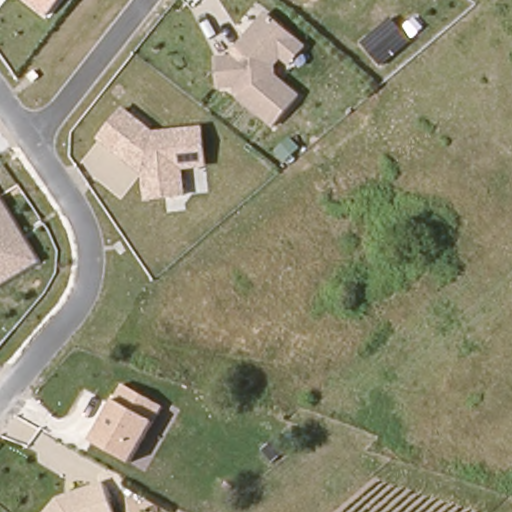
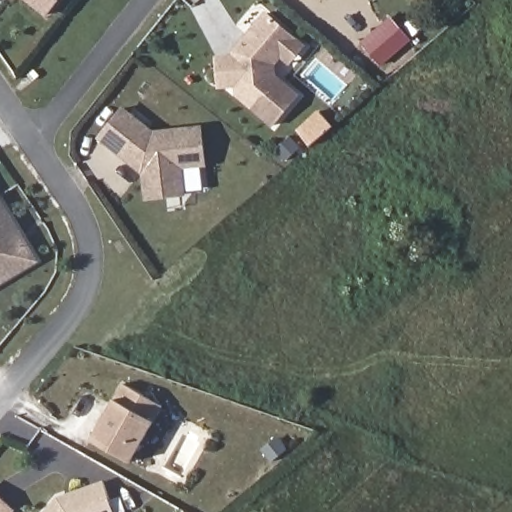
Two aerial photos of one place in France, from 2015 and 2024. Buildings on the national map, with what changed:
unchanged [(27,0),(59,0),(47,15),(27,0)]
unchanged [(306,46),(290,68),(282,63),(278,68),(279,75),(301,96),(274,128),(238,98),(236,88),(220,89),(218,59),(232,60),(267,12),(306,46)]
new [(392,17),(412,40),(382,67),(362,43),(392,17)]
unchanged [(98,139),(123,107),(153,131),(200,125),(204,167),(183,168),(185,196),(144,200),(140,173),(98,139)]
unchanged [(0,284),(0,196),(36,262),(0,284)]
unchanged [(123,384),(161,407),(131,462),(92,440),(123,384)]
unchanged [(56,497),(104,482),(113,512),(43,512),(56,497)]
new [(15,512),(0,512),(0,495),(17,510),(15,512)]

